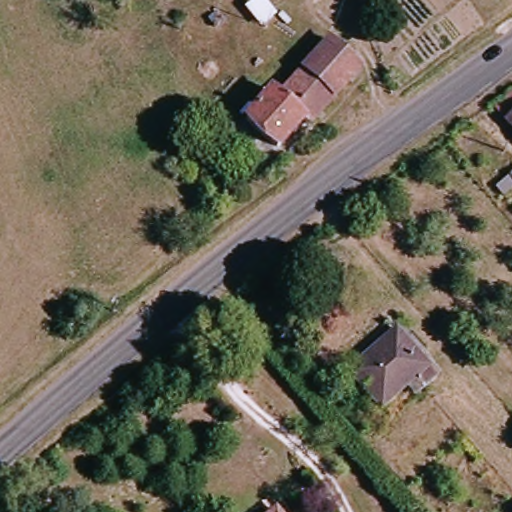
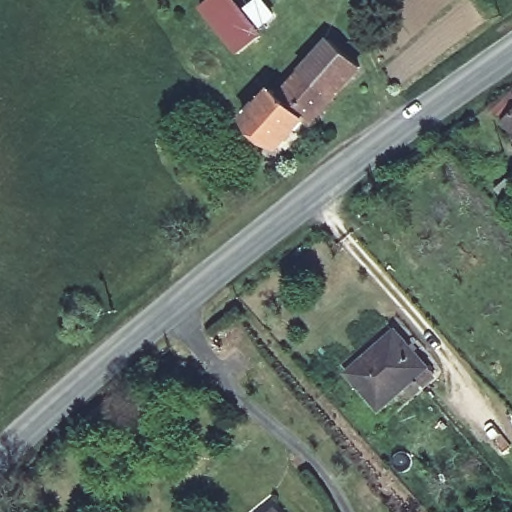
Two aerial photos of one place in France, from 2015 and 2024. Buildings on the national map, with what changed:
new [(201,6),(210,0),(237,0),(263,33),(240,54),(201,6)]
unchanged [(345,54),(360,70),(347,85),(332,72),(316,91),(326,103),(306,129),(301,124),(273,98),(330,37),(345,54)]
unchanged [(301,124),(275,153),(242,123),(268,94),(273,98),(301,124)]
unchanged [(503,128),(512,119),(512,136),(503,128)]
unchanged [(426,368),(380,409),(349,375),(395,334),(426,368)]
unchanged [(272,512),(270,512),(271,511),(272,512)]

